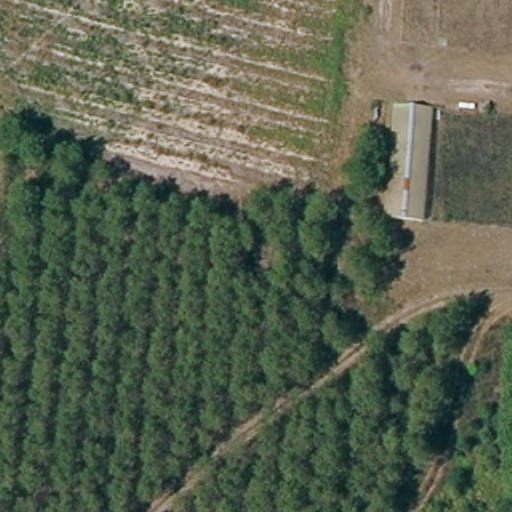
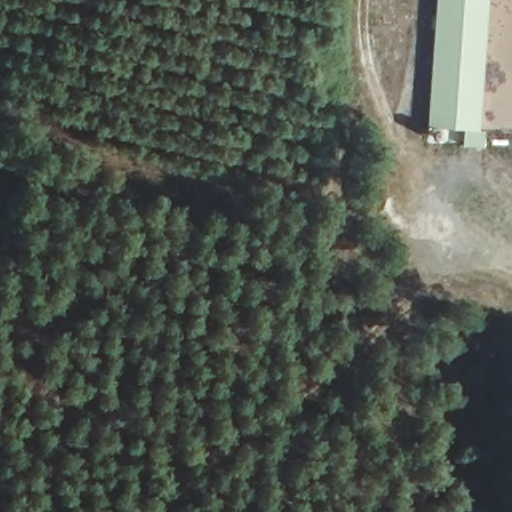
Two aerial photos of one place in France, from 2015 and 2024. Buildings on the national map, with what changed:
new [(485,129),(484,147),(463,146),(464,129),(427,127),(436,0),(489,0),(479,128),(485,129)]
demolished [(389,224),(399,111),(435,113),(425,227),(389,224)]

